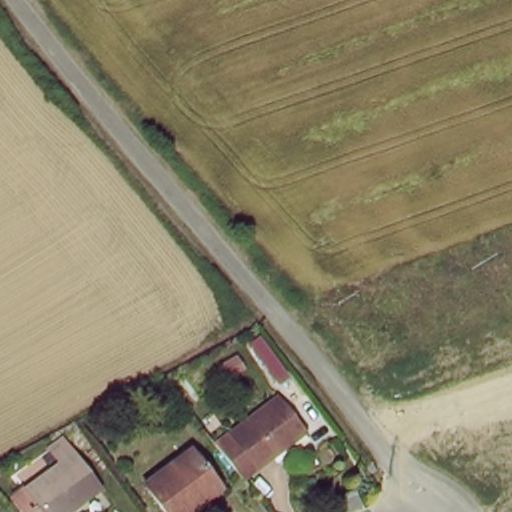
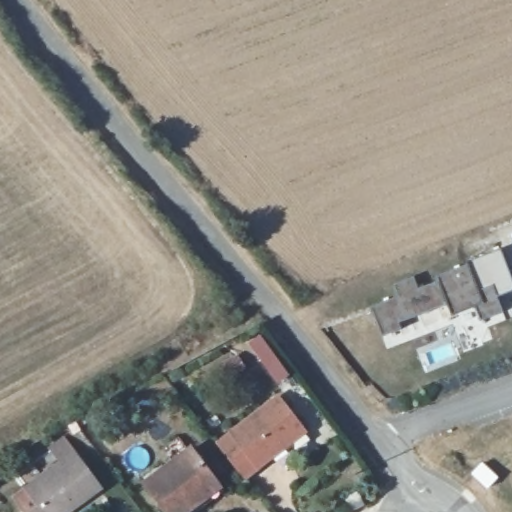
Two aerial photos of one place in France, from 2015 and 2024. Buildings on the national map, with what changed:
new [(512,291),(497,296),(500,311),(480,318),(476,307),(451,315),(446,303),(397,321),(399,328),(381,334),(372,307),(400,297),(395,285),(413,278),(418,290),(439,281),(437,277),(467,265),(467,262),(500,250),(512,282),(512,291)]
unchanged [(231,471),(213,448),(278,399),(304,433),(238,481),(231,471)]
unchanged [(48,447),(65,434),(101,489),(72,512),(23,512),(13,498),(59,463),(48,447)]
unchanged [(215,488),(183,512),(160,512),(143,489),(187,454),(215,488)]

